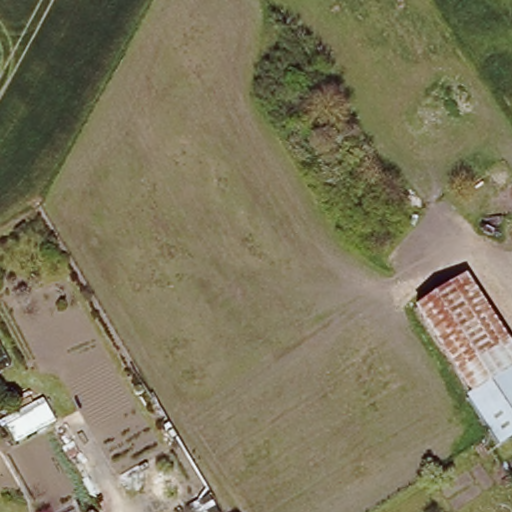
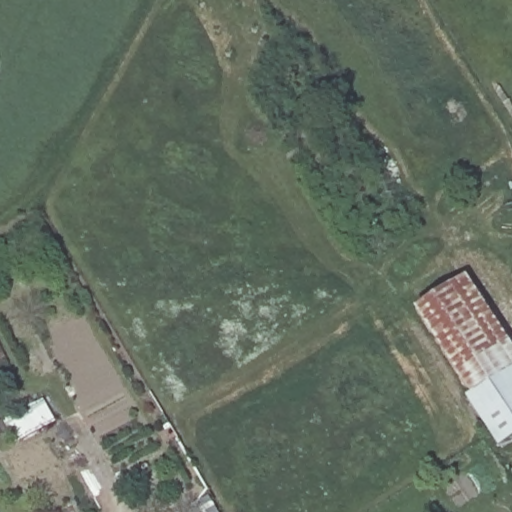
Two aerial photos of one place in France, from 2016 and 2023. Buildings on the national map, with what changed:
unchanged [(512,444),(504,450),(473,405),(477,402),(416,316),(464,283),(512,349),(512,444)]
unchanged [(182,512),(207,497),(214,512),(182,512)]

